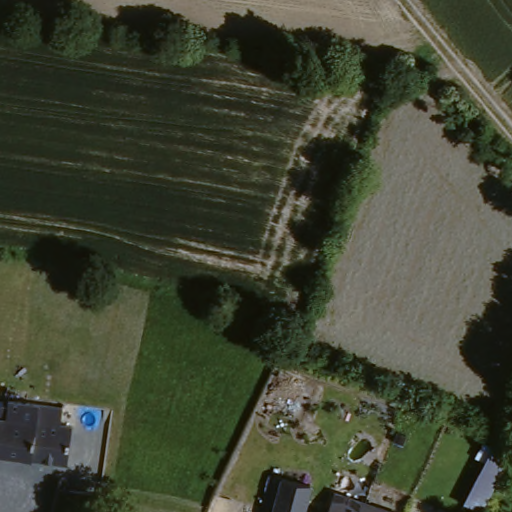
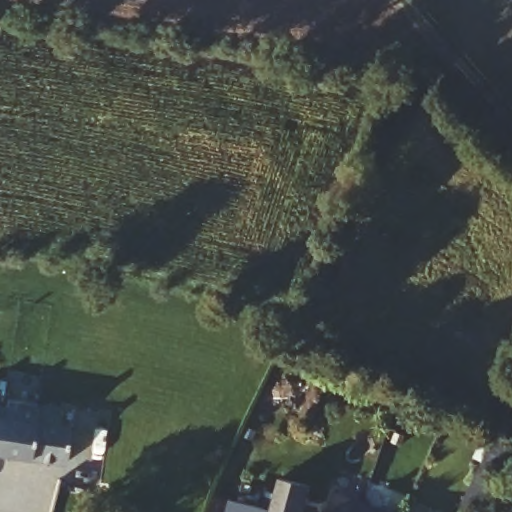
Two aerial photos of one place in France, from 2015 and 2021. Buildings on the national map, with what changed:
unchanged [(3,412),(4,407),(49,415),(54,416),(51,432),(63,435),(55,477),(26,469),(0,463),(0,412),(3,412)]
unchanged [(512,452),(512,459),(483,512),(461,512),(493,441),(512,452)]
unchanged [(301,512),(270,512),(279,480),(308,489),(301,512)]
unchanged [(362,503),(360,512),(322,512),(329,494),(362,503)]
unchanged [(387,512),(360,512),(362,503),(387,512)]

